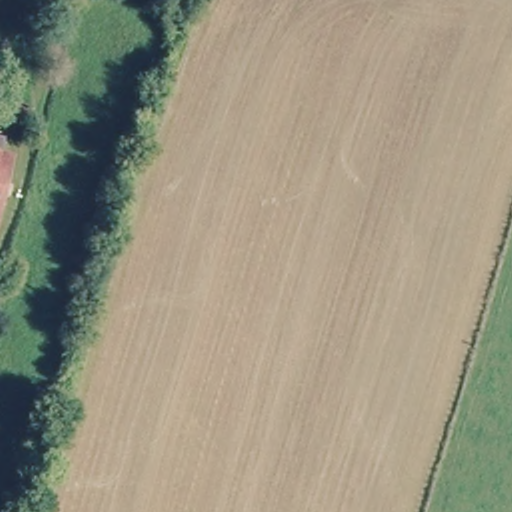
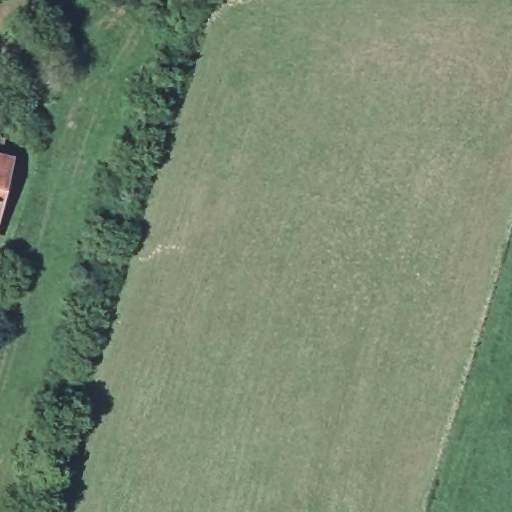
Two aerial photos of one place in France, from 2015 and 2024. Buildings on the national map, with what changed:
unchanged [(0,220),(0,152),(18,157),(0,220)]

